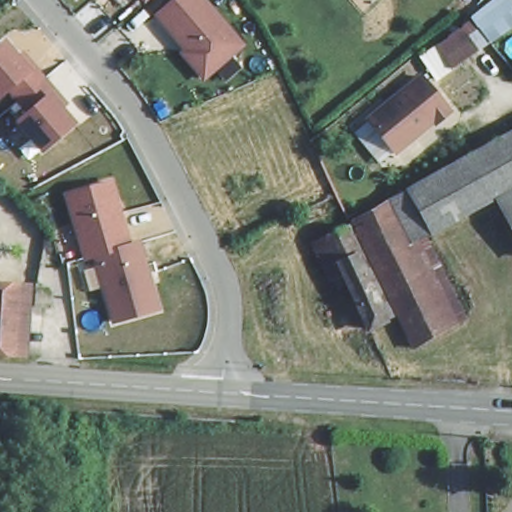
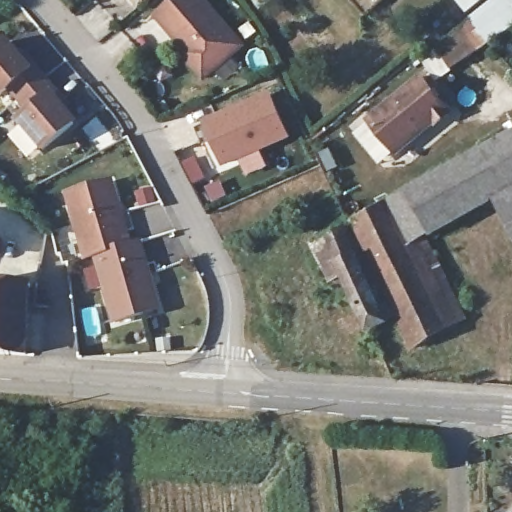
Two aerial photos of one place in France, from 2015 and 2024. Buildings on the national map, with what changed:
unchanged [(143,0),(148,0),(145,3),(143,0)]
unchanged [(209,78),(184,55),(187,48),(158,13),(173,0),(210,0),(247,41),(209,78)]
unchanged [(494,34),(433,70),(414,44),(469,1),(470,0),(512,0),(512,23),(494,34)]
unchanged [(17,123),(30,111),(11,89),(0,99),(0,43),(4,41),(19,56),(24,51),(69,103),(63,109),(77,124),(44,152),(17,123)]
unchanged [(447,104),(432,114),(430,111),(390,141),(365,106),(420,66),(447,104)]
new [(245,175),(238,159),(221,165),(201,118),(267,88),(290,136),(261,148),(267,166),(245,175)]
unchanged [(430,232),(419,209),(429,201),(417,181),(512,125),(512,184),(430,232)]
unchanged [(129,241),(141,240),(161,310),(111,323),(92,258),(80,261),(61,193),(112,180),(129,241)]
unchanged [(429,201),(419,209),(430,232),(470,315),(415,344),(356,216),(417,181),(429,201)]
unchanged [(341,264),(325,271),(310,243),(345,226),(390,314),(370,323),(345,272),(341,264)]
unchanged [(0,273),(30,274),(26,352),(0,349),(0,273)]

